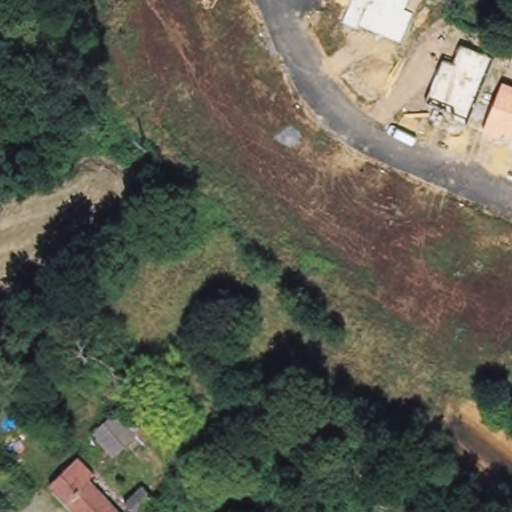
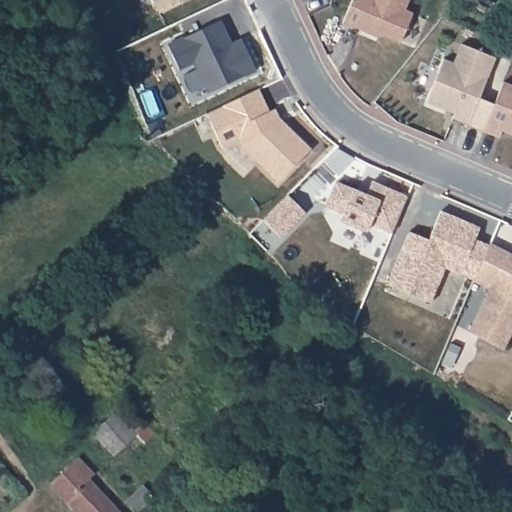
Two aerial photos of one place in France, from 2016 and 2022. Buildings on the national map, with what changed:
new [(152,0),(186,0),(158,13),(152,0)]
new [(342,23),(352,0),(409,0),(404,9),(413,13),(399,43),(379,34),(377,38),(357,29),(342,23)]
new [(193,63),(177,69),(166,43),(220,20),(231,42),(240,38),(254,70),(206,91),(193,63)]
unchanged [(443,60),(454,64),(462,44),(494,57),(467,123),(451,118),(453,113),(426,99),(443,60)]
unchanged [(502,83),(512,87),(512,134),(503,130),(499,139),(483,131),(502,83)]
new [(268,112),(274,109),(278,118),(310,150),(277,183),(239,145),(237,140),(221,148),(205,114),(258,89),(268,112)]
new [(335,182),(365,195),(371,182),(407,197),(391,233),(369,224),(365,232),(338,220),(341,213),(324,206),(335,182)]
new [(408,232),(427,240),(440,211),(479,228),(474,239),(488,245),(473,280),(444,269),(429,303),(386,284),(408,232)]
new [(488,289),(472,282),(473,280),(488,245),(489,243),(512,255),(512,331),(502,349),(467,332),(488,289)]
unchanged [(163,438),(148,449),(142,444),(116,462),(91,429),(133,397),(163,438)]
unchanged [(72,463),(83,476),(88,472),(123,512),(80,512),(52,480),(72,463)]

